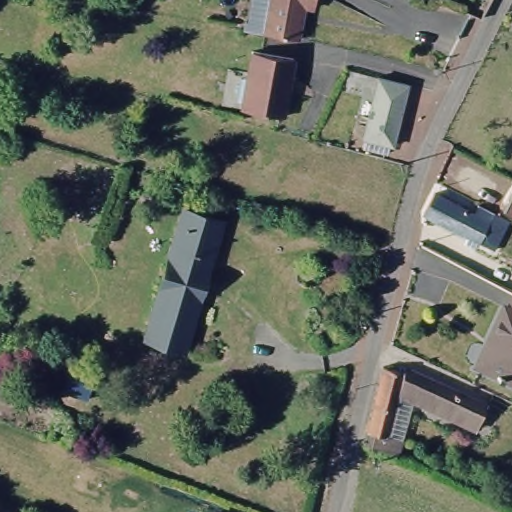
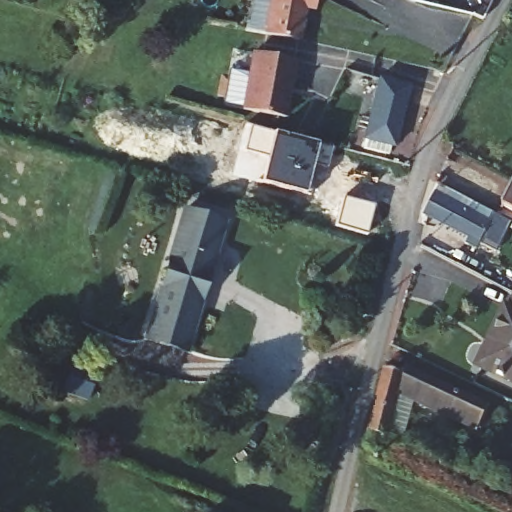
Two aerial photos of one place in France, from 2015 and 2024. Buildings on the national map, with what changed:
unchanged [(254,23),(258,0),(256,0),(323,0),(321,8),(310,7),(302,41),(270,35),(250,31),(251,23),(254,23)]
unchanged [(257,56),(297,63),(286,120),(245,111),(257,56)]
unchanged [(378,77),(410,85),(393,146),(363,138),(378,77)]
new [(268,157),(245,150),(251,125),(274,133),(318,143),(332,147),(326,169),(312,166),(305,194),(261,182),(268,157)]
unchanged [(486,240),(430,210),(441,188),(475,206),(479,199),(501,210),(512,216),(512,222),(500,247),(486,240)]
unchanged [(512,188),(512,201),(506,198),(512,188)]
new [(344,197),(374,205),(366,234),(335,226),(344,197)]
unchanged [(187,205),(227,217),(204,285),(165,273),(187,205)]
unchanged [(165,273),(204,285),(182,348),(145,335),(165,273)]
unchanged [(512,297),(510,296),(512,293),(512,297)]
unchanged [(486,338),(483,338),(499,307),(503,310),(510,295),(510,296),(512,297),(512,387),(472,366),(486,338)]
unchanged [(408,360),(488,400),(476,429),(401,399),(386,454),(362,448),(387,356),(408,360)]
unchanged [(81,357),(100,366),(88,396),(68,388),(81,357)]

